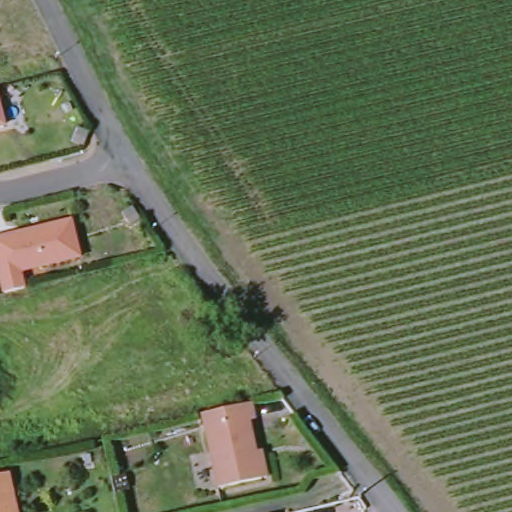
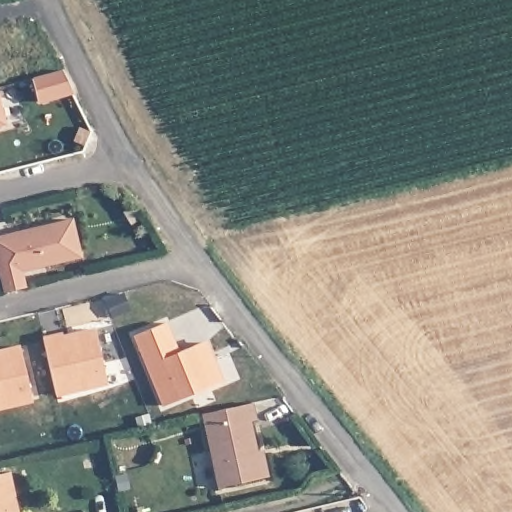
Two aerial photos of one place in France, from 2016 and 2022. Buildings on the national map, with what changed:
unchanged [(8,144),(0,146),(0,116),(8,144)]
new [(77,126),(88,130),(82,144),(71,140),(77,126)]
unchanged [(79,261),(20,275),(24,292),(3,297),(0,284),(0,241),(10,238),(20,236),(70,224),(79,261)]
new [(179,352),(203,343),(211,362),(215,361),(223,382),(165,406),(137,335),(167,323),(179,352)]
new [(65,332),(65,335),(96,329),(108,386),(57,396),(45,336),(65,332)]
new [(19,347),(31,405),(0,410),(0,351),(19,347)]
unchanged [(216,474),(202,415),(252,404),(255,418),(248,420),(255,452),(263,451),(266,463),(268,475),(261,477),(218,486),(216,474)]
unchanged [(7,472),(17,512),(0,512),(0,473),(7,472)]

